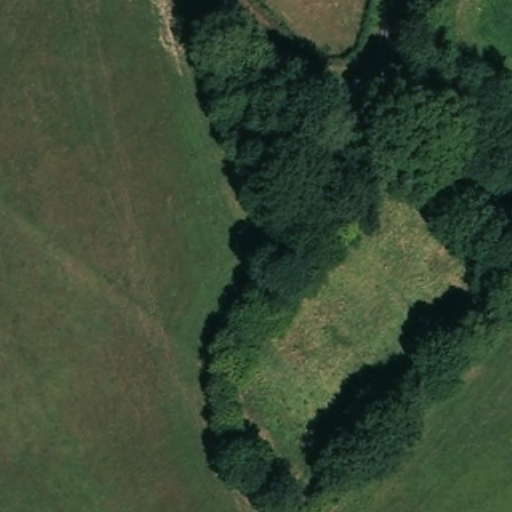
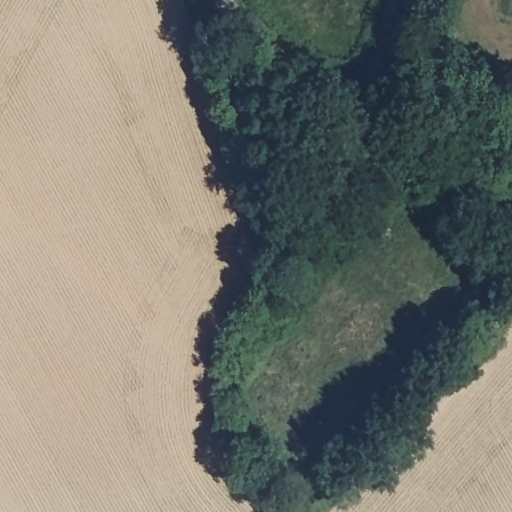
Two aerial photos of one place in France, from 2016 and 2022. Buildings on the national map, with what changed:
[]

